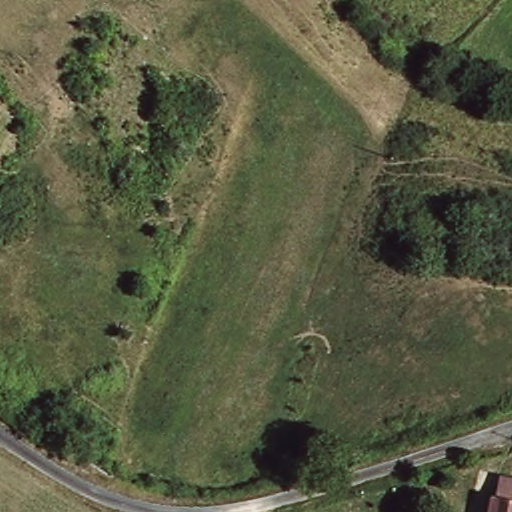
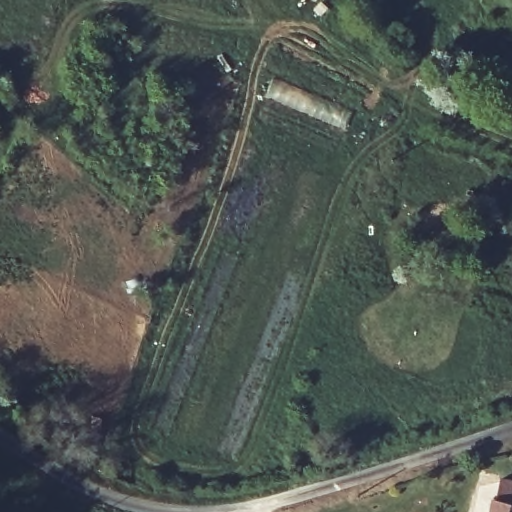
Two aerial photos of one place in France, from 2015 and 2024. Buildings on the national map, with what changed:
unchanged [(504,496),(507,480),(512,481),(512,512),(495,512),(499,495),(504,496)]

